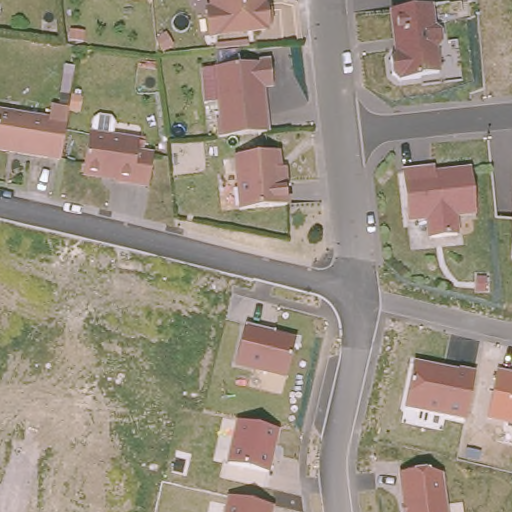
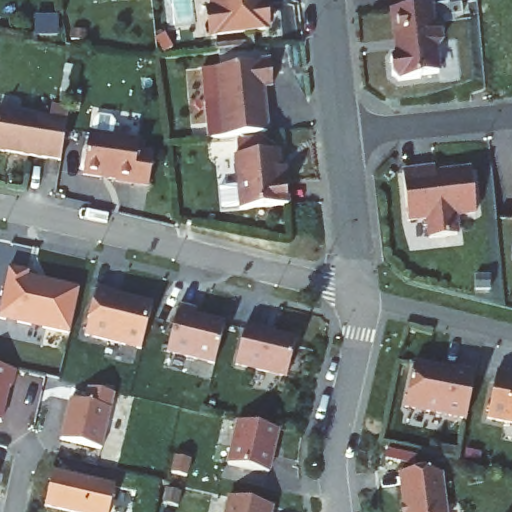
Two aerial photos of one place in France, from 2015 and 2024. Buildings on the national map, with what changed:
unchanged [(264,7),(269,12),(270,23),(265,28),(265,31),(210,36),(208,10),(215,10),(215,0),(263,0),(264,7)]
unchanged [(432,2),(435,24),(440,29),(442,39),(437,45),(440,71),(422,73),(422,76),(400,78),(394,72),(392,57),(397,50),(402,50),(400,30),(397,31),(394,7),(432,2)]
new [(174,48),(164,54),(155,41),(165,35),(174,48)]
unchanged [(219,121),(224,121),(219,68),(272,63),(274,86),(264,87),(269,133),(269,134),(220,138),(219,121)]
unchanged [(0,112),(50,120),(52,107),(69,110),(60,161),(0,151),(0,112)]
unchanged [(143,137),(141,148),(157,151),(152,182),(119,176),(119,174),(87,169),(95,128),(143,137)]
unchanged [(279,153),(282,182),(287,182),(289,206),(244,211),(238,157),(279,153)]
unchanged [(425,172),(473,167),(477,210),(457,212),(460,232),(432,235),(430,215),(410,217),(405,168),(425,166),(425,172)]
new [(0,319),(0,307),(9,266),(29,270),(27,278),(82,288),(67,329),(62,334),(0,319)]
new [(477,273),(492,272),(492,286),(477,287),(477,273)]
new [(96,285),(113,289),(112,292),(151,302),(140,346),(84,332),(96,285)]
new [(177,304),(194,309),(193,314),(224,322),(214,361),(166,349),(177,304)]
unchanged [(296,337),(286,380),(235,367),(245,325),(296,337)]
unchanged [(460,368),(475,371),(466,421),(405,409),(413,362),(460,371),(460,368)]
new [(10,383),(8,383),(0,417),(0,365),(15,368),(10,383)]
unchanged [(487,420),(497,370),(512,372),(512,425),(487,420)]
new [(69,397),(109,406),(100,446),(60,437),(69,397)]
unchanged [(227,464),(237,421),(279,430),(269,474),(227,464)]
new [(107,512),(85,512),(44,502),(52,468),(114,483),(107,512)]
unchanged [(443,475),(448,512),(403,512),(400,475),(429,471),(443,475)]
new [(177,503),(162,500),(165,487),(180,490),(177,503)]
unchanged [(274,507),(273,512),(225,512),(228,497),(274,507)]

